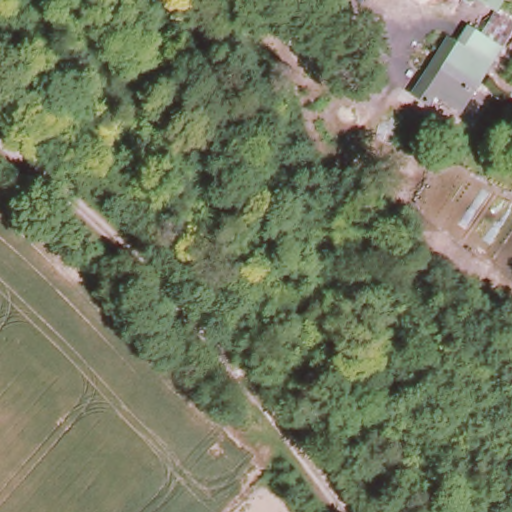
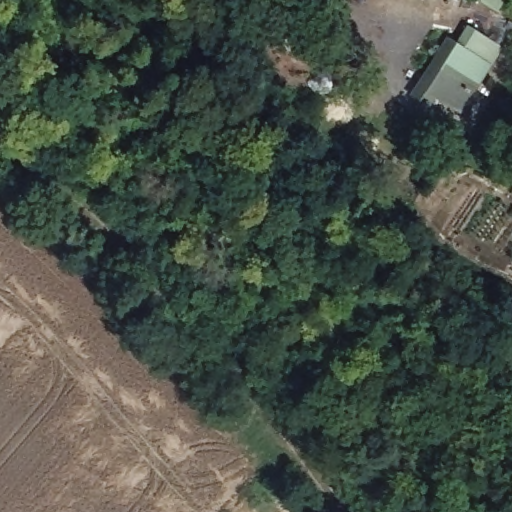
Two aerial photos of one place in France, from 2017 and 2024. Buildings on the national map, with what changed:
unchanged [(435,98),(428,107),(410,94),(447,36),(455,41),(467,25),(503,47),(461,114),(435,98)]

